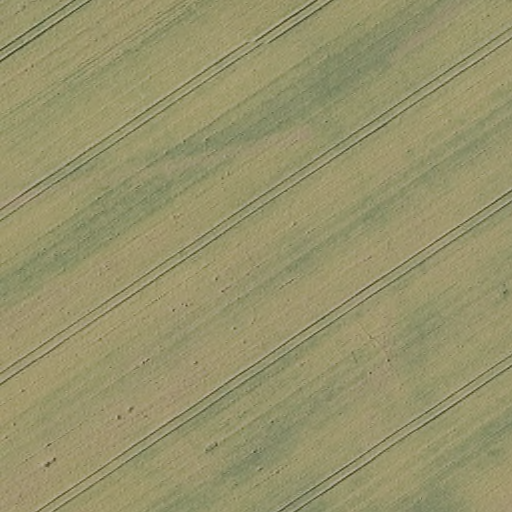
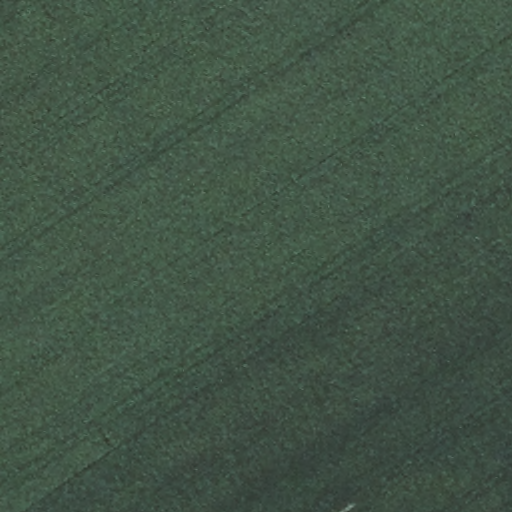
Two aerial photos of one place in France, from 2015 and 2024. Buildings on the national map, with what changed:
[]

